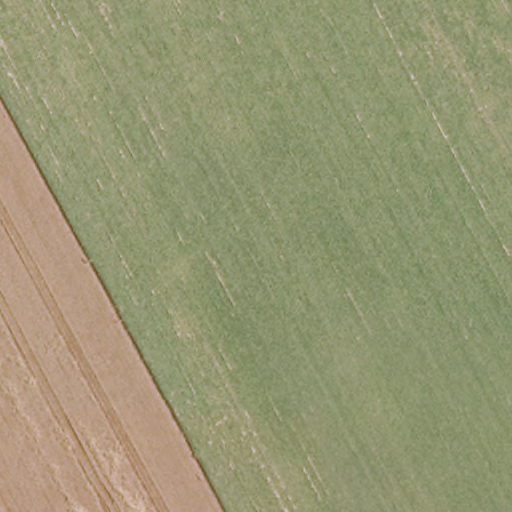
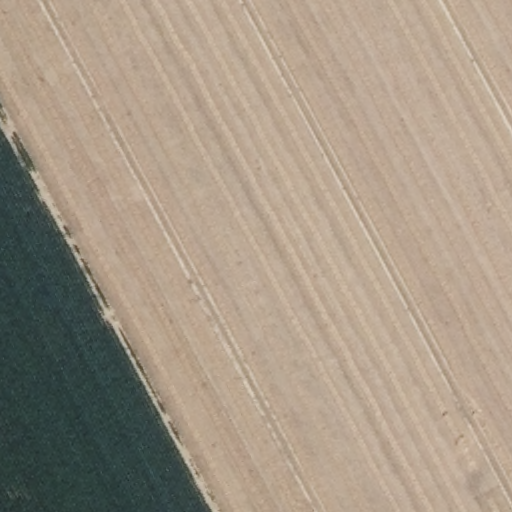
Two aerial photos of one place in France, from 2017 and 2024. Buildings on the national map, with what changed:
[]

